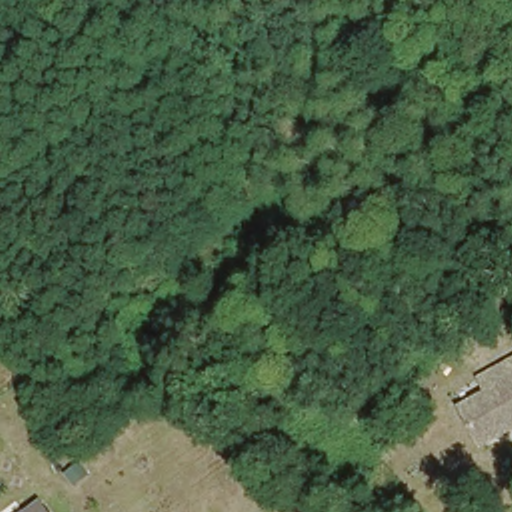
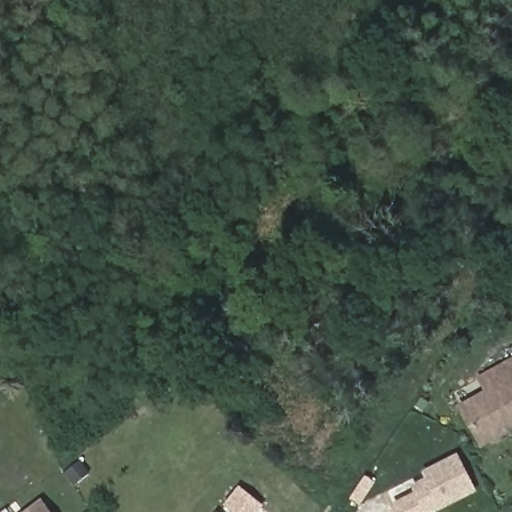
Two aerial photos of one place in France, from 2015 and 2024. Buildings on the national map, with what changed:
unchanged [(474,438),(463,420),(490,404),(481,391),(494,382),(494,383),(512,372),(512,442),(486,458),(474,438)]
new [(438,512),(395,512),(391,504),(413,493),(409,487),(425,478),(422,472),(457,454),(476,493),(438,512)]
unchanged [(39,505),(44,512),(30,512),(39,505)]

